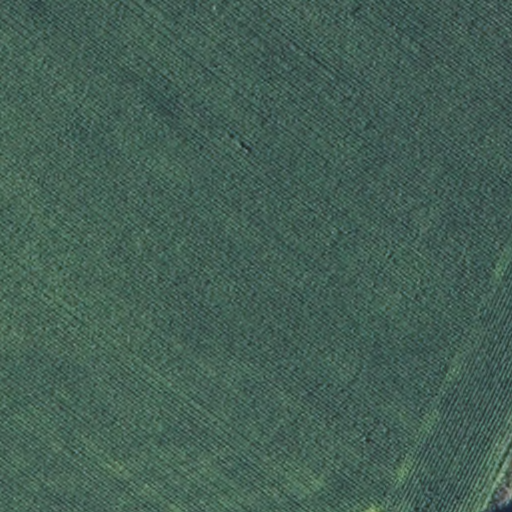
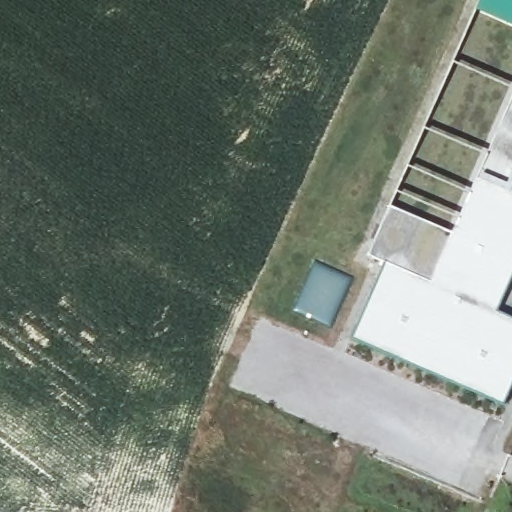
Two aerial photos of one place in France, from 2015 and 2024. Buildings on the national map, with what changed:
new [(475,9),(479,0),(512,0),(512,25),(475,9)]
new [(385,262),(368,256),(390,206),(455,234),(512,101),(512,273),(495,312),(512,319),(512,383),(503,403),(351,339),(385,262)]

